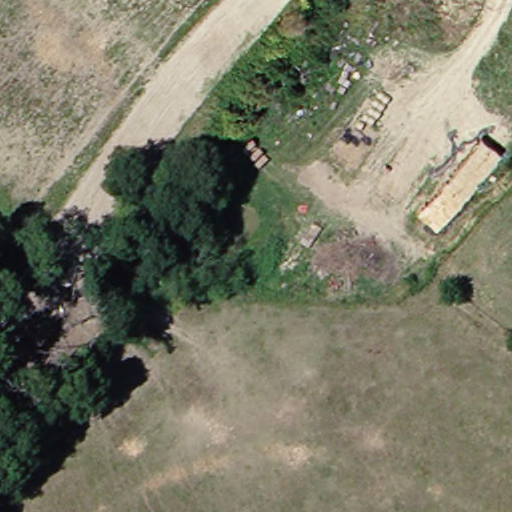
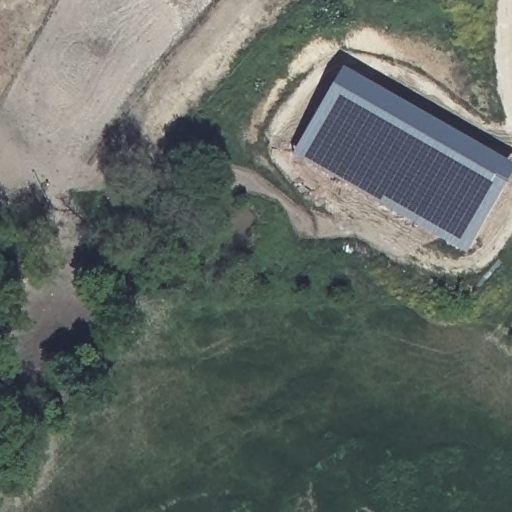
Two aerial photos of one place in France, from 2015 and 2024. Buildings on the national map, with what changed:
demolished [(447,0),(472,0),(465,11),(447,0)]
new [(512,167),(512,176),(465,256),(294,153),(344,67),(512,167)]

